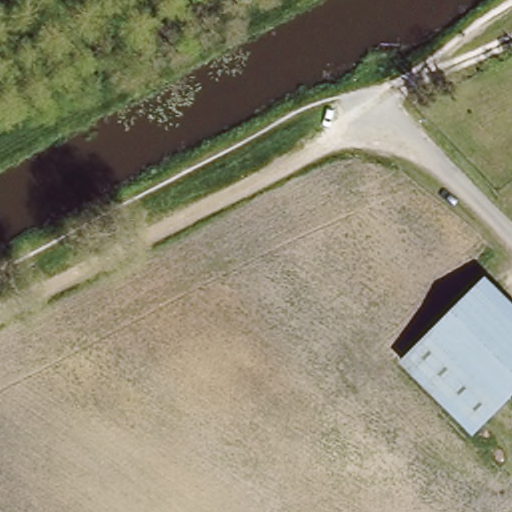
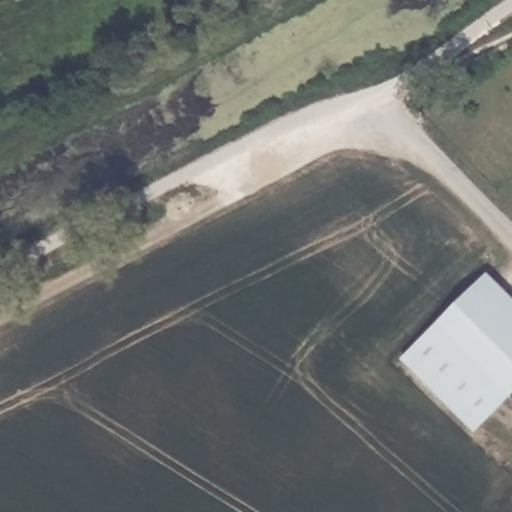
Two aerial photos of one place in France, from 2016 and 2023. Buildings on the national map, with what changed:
unchanged [(487,276),(512,300),(512,397),(510,400),(475,435),(401,363),(426,338),(436,328),(487,276)]

